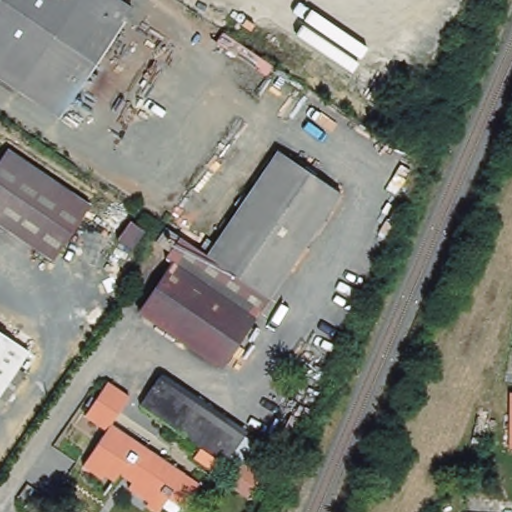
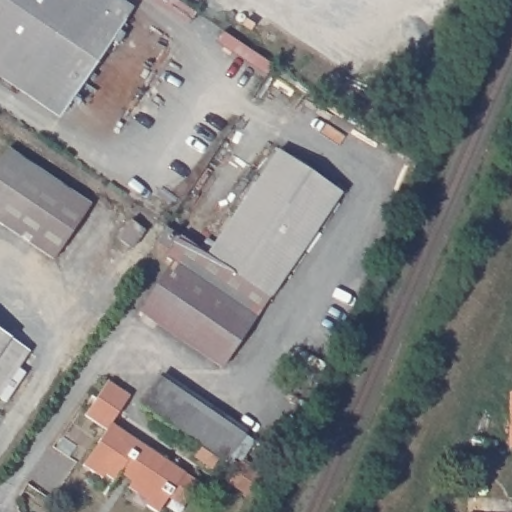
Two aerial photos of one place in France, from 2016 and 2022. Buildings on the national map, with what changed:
unchanged [(121,32),(75,99),(61,120),(0,79),(0,0),(114,0),(134,13),(121,32)]
unchanged [(280,149),(341,192),(270,295),(208,254),(280,149)]
unchanged [(89,207),(52,260),(0,225),(0,160),(6,151),(89,207)]
unchanged [(144,233),(132,249),(117,239),(129,222),(144,233)]
unchanged [(221,368),(139,313),(172,263),(164,258),(169,251),(154,242),(165,225),(186,239),(208,254),(270,295),(221,368)]
unchanged [(16,369),(25,375),(5,404),(0,401),(0,334),(27,352),(16,369)]
unchanged [(155,378),(239,435),(221,463),(137,406),(155,378)]
unchanged [(109,482),(100,475),(97,479),(77,467),(101,432),(80,417),(104,383),(124,397),(106,424),(179,474),(154,512),(148,512),(140,507),(142,503),(121,489),(125,483),(114,475),(109,482)]
unchanged [(512,393),(512,448),(509,448),(510,393),(512,393)]

